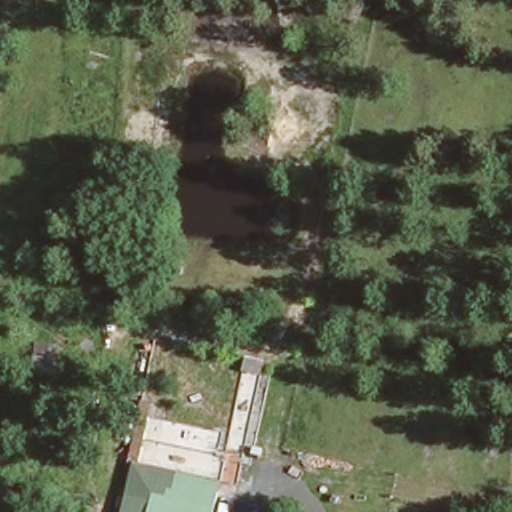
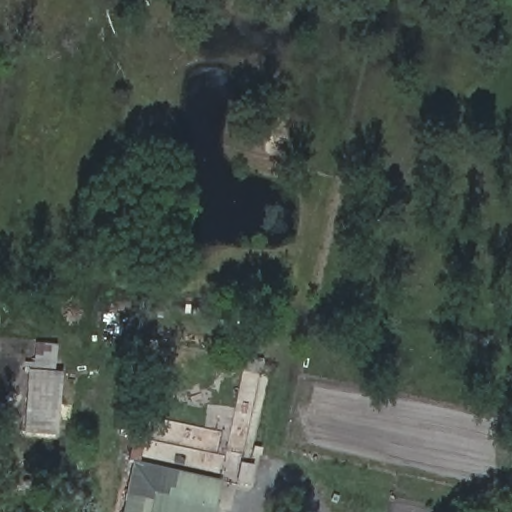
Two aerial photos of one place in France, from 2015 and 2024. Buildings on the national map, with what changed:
new [(35,353),(36,343),(58,345),(55,373),(64,374),(58,436),(24,434),(31,352),(35,353)]
unchanged [(151,512),(122,512),(131,468),(159,473),(151,512)]
unchanged [(219,486),(213,512),(151,512),(159,473),(219,486)]

